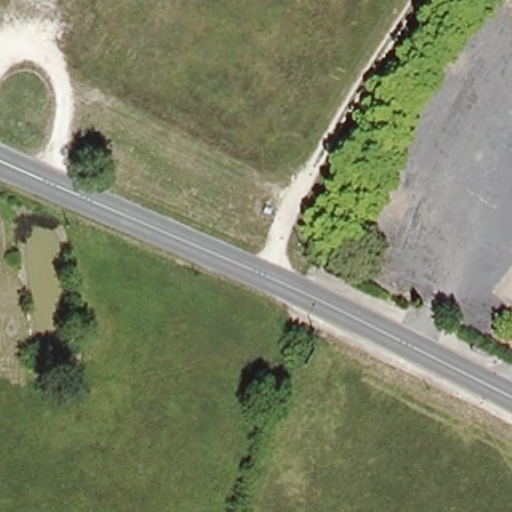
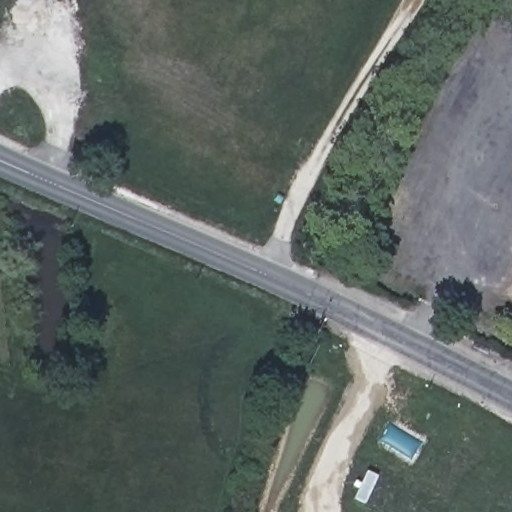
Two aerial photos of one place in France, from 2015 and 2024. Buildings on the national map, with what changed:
[]

